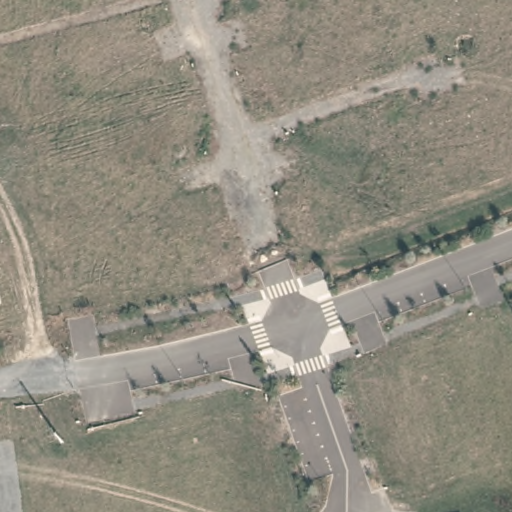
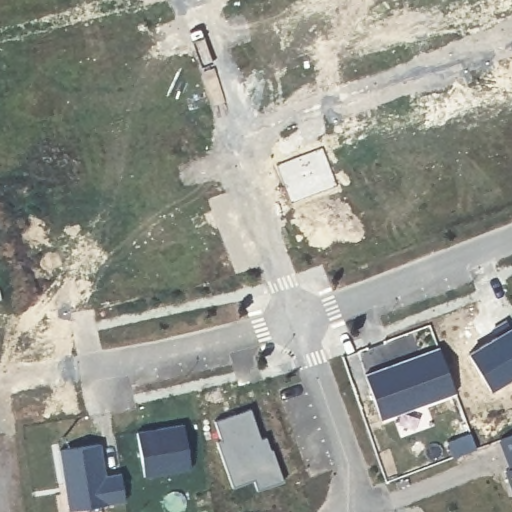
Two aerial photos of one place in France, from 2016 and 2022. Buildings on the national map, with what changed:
unchanged [(0,296),(0,290),(1,296),(0,296)]
new [(380,420),(364,372),(438,345),(457,392),(380,420)]
new [(261,437),(265,436),(269,447),(271,447),(283,481),(256,491),(252,481),(231,488),(215,440),(220,439),(214,419),(248,408),(261,437)]
new [(192,469),(144,476),(135,431),(183,422),(192,469)]
new [(503,471),(508,468),(496,438),(512,432),(512,494),(503,471)]
new [(68,511),(59,448),(100,443),(105,475),(121,472),(126,501),(68,511)]

